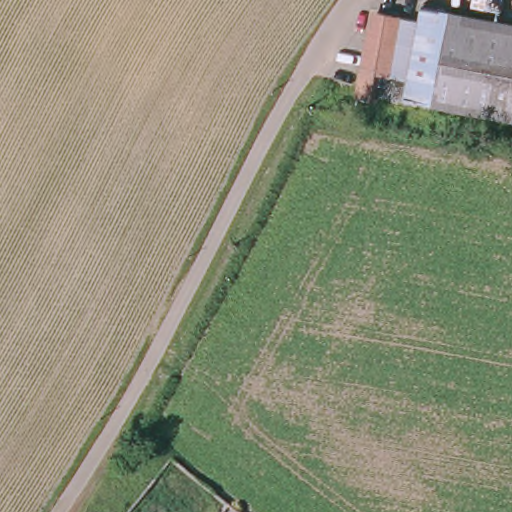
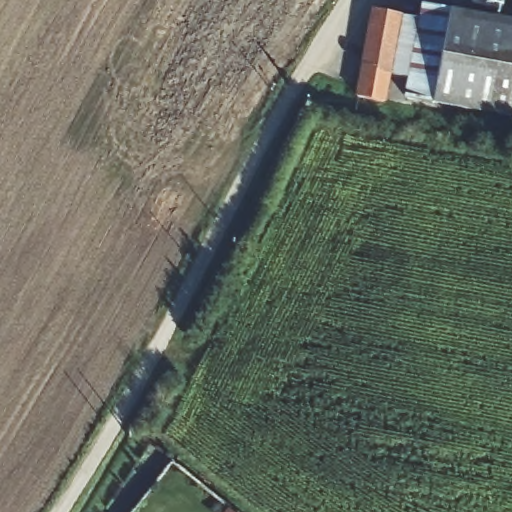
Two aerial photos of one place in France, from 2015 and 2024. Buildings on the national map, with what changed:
unchanged [(409,79),(420,20),(421,20),(424,5),(512,21),(512,117),(479,110),(476,125),(404,111),(409,79)]
unchanged [(373,22),(374,11),(420,20),(409,79),(384,73),(381,85),(373,83),(369,98),(353,96),(366,22),(373,22)]

